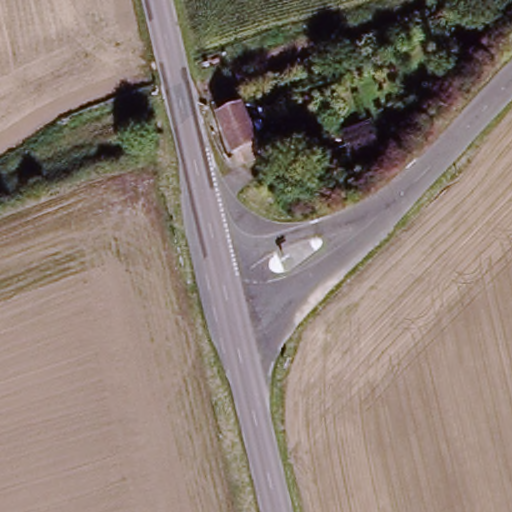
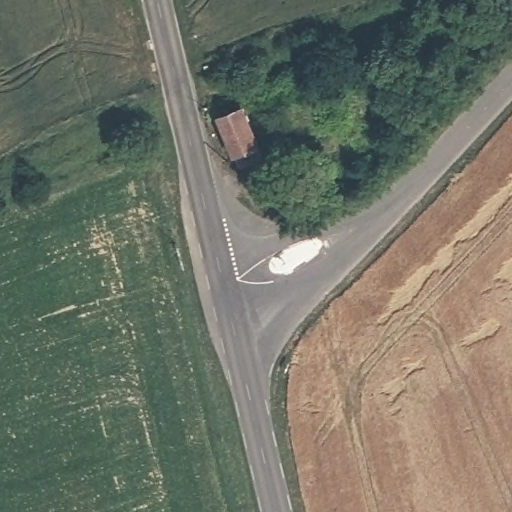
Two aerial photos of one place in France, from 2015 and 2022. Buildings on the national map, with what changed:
unchanged [(282,155),(248,167),(243,153),(240,155),(235,142),(232,143),(217,107),(237,100),(240,98),(255,131),(255,136),(259,147),(275,140),(282,155)]
unchanged [(398,148),(349,166),(340,135),(387,123),(398,148)]

